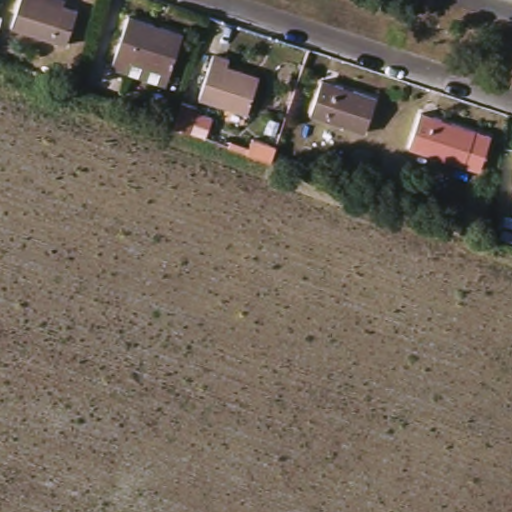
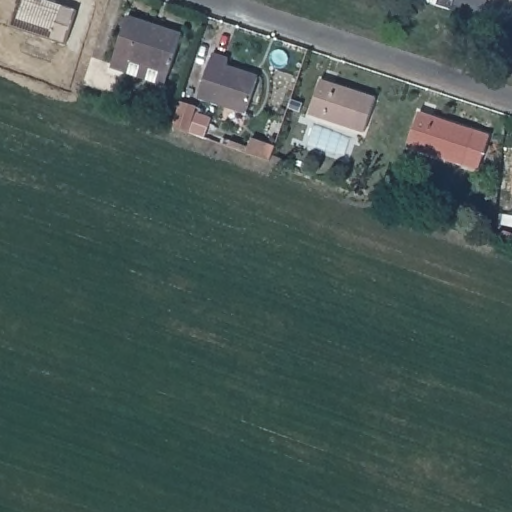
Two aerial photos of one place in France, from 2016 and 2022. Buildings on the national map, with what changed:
unchanged [(66,42),(11,24),(19,0),(63,0),(62,3),(78,8),(66,42)]
unchanged [(126,75),(127,71),(113,66),(128,20),(129,20),(183,38),(170,78),(166,89),(126,75)]
unchanged [(232,66),(264,77),(252,111),(204,95),(218,54),(234,59),(232,66)]
unchanged [(381,99),(370,132),(315,113),(326,80),(381,99)]
unchanged [(201,95),(193,120),(179,115),(187,90),(201,95)]
unchanged [(215,109),(210,126),(196,121),(201,105),(215,109)]
unchanged [(414,107),(485,131),(474,165),(458,160),(403,141),(414,107)]
unchanged [(251,139),(255,127),(280,136),(276,147),(251,139)]

